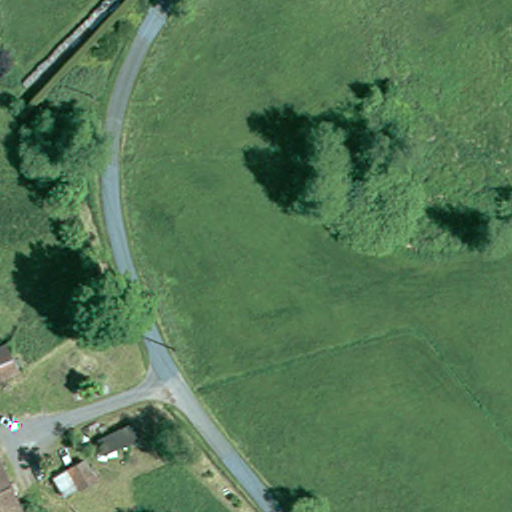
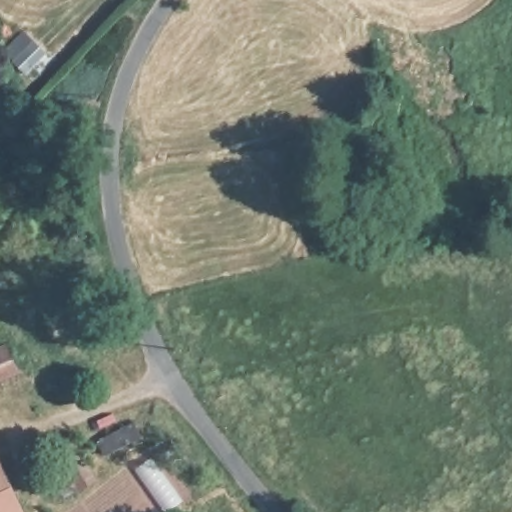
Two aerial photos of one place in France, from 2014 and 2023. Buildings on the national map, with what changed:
unchanged [(8,352),(19,375),(0,384),(0,356),(8,352)]
unchanged [(99,441),(136,423),(143,437),(106,455),(99,441)]
unchanged [(82,486),(66,495),(57,478),(86,461),(98,480),(83,489),(82,486)]
unchanged [(21,512),(0,512),(0,468),(21,512)]

